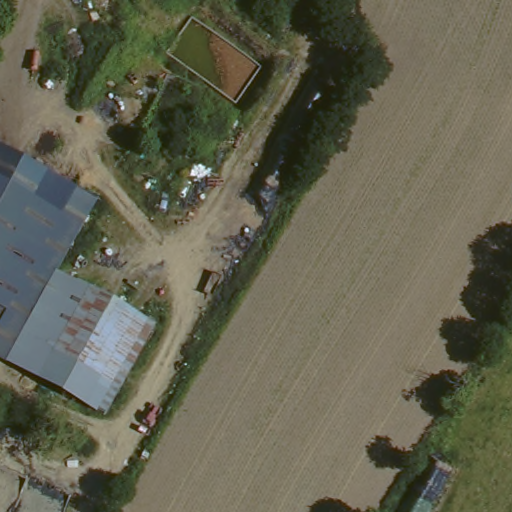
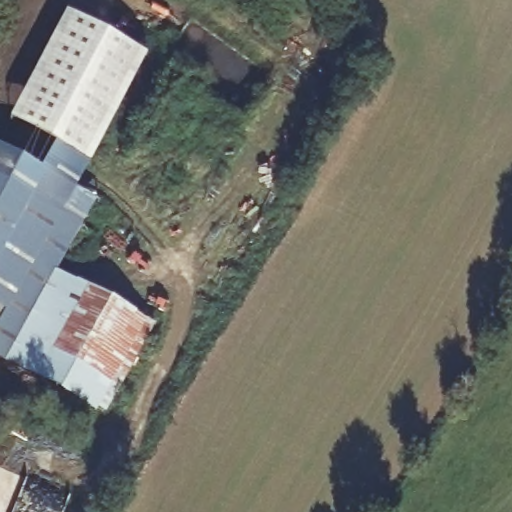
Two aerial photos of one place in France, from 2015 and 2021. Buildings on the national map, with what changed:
new [(149,54),(91,163),(11,119),(67,14),(149,54)]
unchanged [(97,204),(55,275),(154,328),(105,417),(0,364),(0,153),(97,204)]

